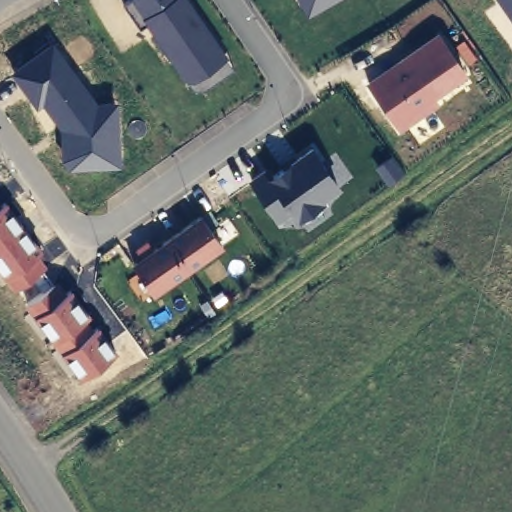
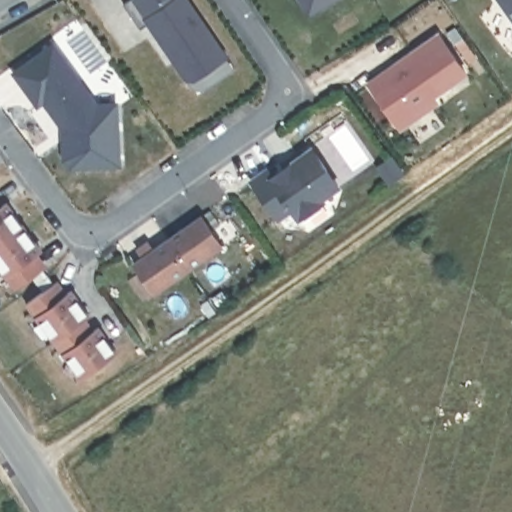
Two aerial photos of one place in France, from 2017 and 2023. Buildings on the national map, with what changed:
unchanged [(194,80),(184,78),(146,22),(139,27),(120,1),(122,0),(190,0),(229,56),(194,80)]
unchanged [(308,16),(299,0),(337,0),(308,16)]
unchanged [(498,0),(512,0),(512,21),(498,0)]
unchanged [(435,96),(440,102),(400,130),(364,81),(438,30),(469,74),(435,96)]
unchanged [(69,167),(62,159),(61,127),(42,102),(36,107),(10,72),(55,40),(100,100),(118,100),(122,165),(69,167)]
unchanged [(324,200),(327,202),(299,221),(290,210),(277,220),(247,180),(267,165),(272,171),(312,143),(342,185),(324,200)]
unchanged [(0,268),(0,202),(2,205),(7,200),(44,250),(40,252),(49,265),(16,289),(0,268)]
unchanged [(155,295),(129,260),(200,212),(224,246),(155,295)]
unchanged [(82,377),(27,301),(55,281),(65,293),(71,289),(91,315),(87,318),(94,326),(100,322),(119,349),(82,377)]

